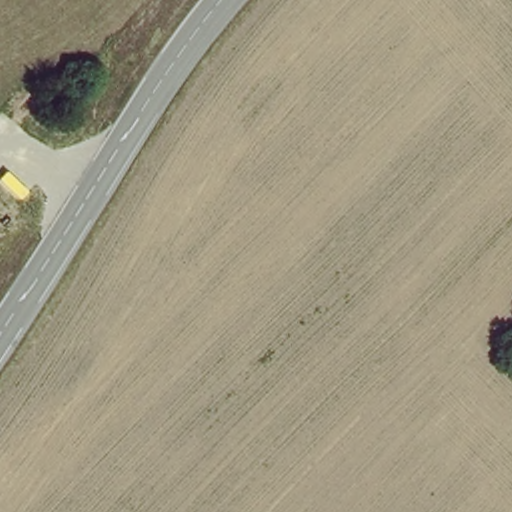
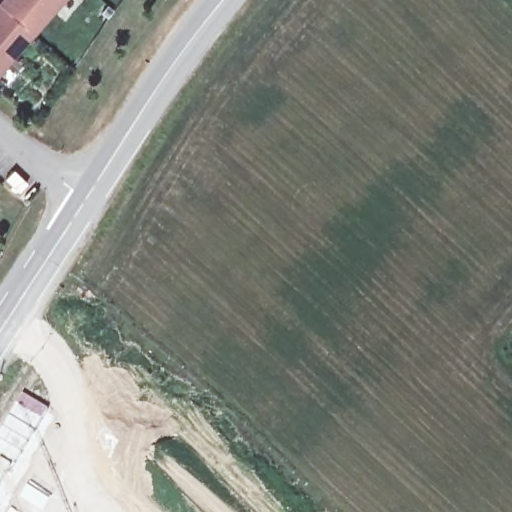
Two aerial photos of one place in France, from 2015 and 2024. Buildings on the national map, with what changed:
new [(61,0),(32,34),(0,6),(0,5),(5,0),(61,0)]
new [(0,71),(0,6),(32,34),(0,71)]

